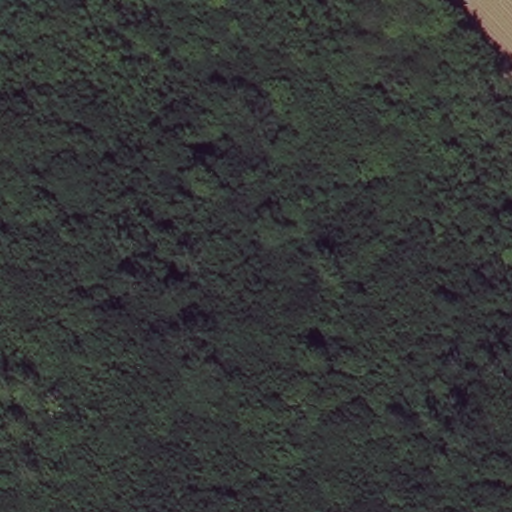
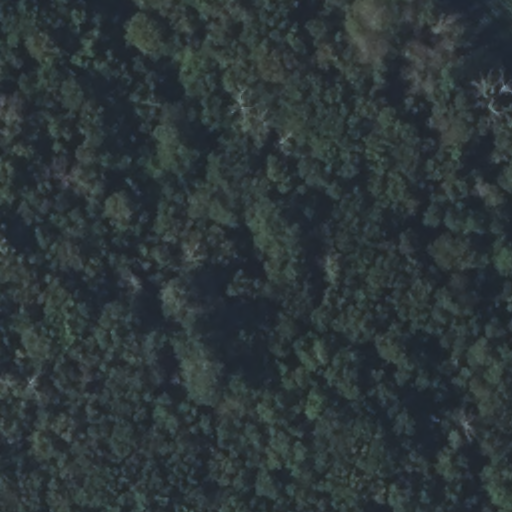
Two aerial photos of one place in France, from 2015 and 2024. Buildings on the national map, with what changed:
unchanged [(213,450),(190,440),(195,427),(219,438),(213,450)]

